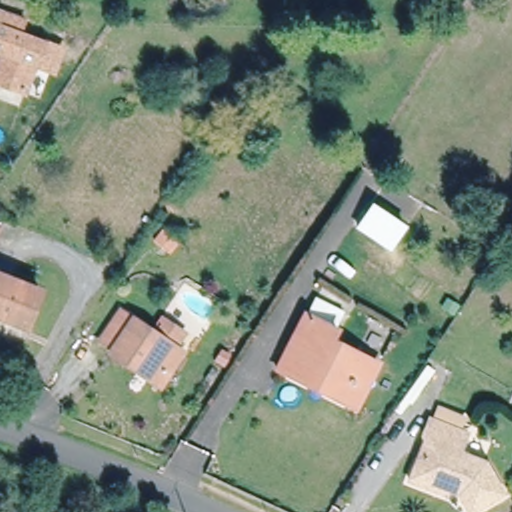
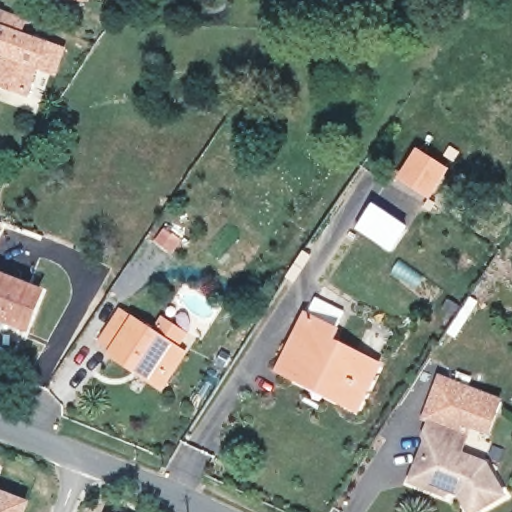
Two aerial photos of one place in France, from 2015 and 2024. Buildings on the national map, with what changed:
unchanged [(18,34),(62,51),(54,72),(35,65),(25,93),(0,84),(0,65),(4,54),(0,52),(0,8),(24,18),(18,34)]
unchanged [(390,269),(357,247),(370,226),(403,248),(390,269)]
unchanged [(0,310),(0,276),(0,275),(41,290),(29,322),(0,310)]
unchanged [(125,307),(154,326),(163,312),(189,329),(180,343),(186,346),(160,386),(114,356),(116,353),(101,344),(125,307)]
unchanged [(349,407),(335,400),(273,369),(300,315),(332,331),(328,339),(358,354),(372,361),(349,407)]
new [(438,373),(504,399),(490,436),(473,430),(471,435),(439,418),(434,427),(422,420),(438,373)]
unchanged [(430,433),(434,427),(439,418),(471,435),(475,437),(465,456),(487,468),(497,482),(470,502),(460,489),(455,484),(437,476),(428,482),(408,470),(417,455),(430,433)]
new [(26,512),(0,512),(0,488),(31,500),(26,512)]

